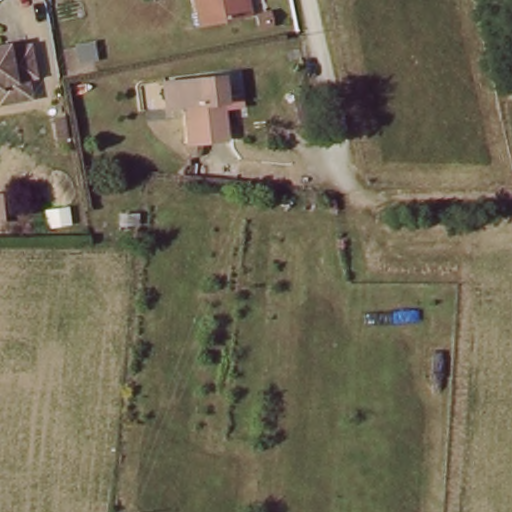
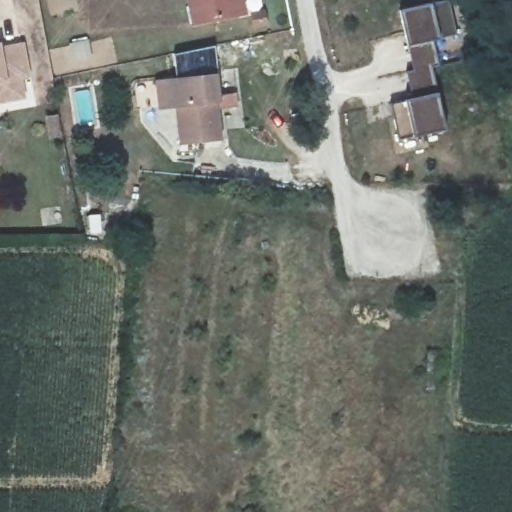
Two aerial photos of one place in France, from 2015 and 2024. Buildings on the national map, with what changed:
unchanged [(241,14),(194,24),(190,0),(246,0),(249,12),(241,14)]
new [(405,72),(412,71),(398,11),(444,0),(446,0),(455,34),(431,40),(437,65),(430,67),(445,129),(397,140),(389,104),(411,99),(405,72)]
unchanged [(15,46),(26,44),(31,71),(22,72),(26,96),(12,97),(0,100),(0,44),(14,41),(15,46)]
unchanged [(222,98),(219,99),(223,137),(185,141),(181,102),(171,103),(162,104),(159,79),(167,77),(219,71),(222,98)]

